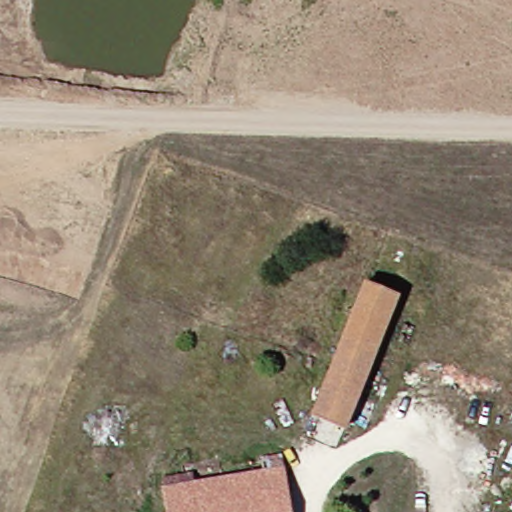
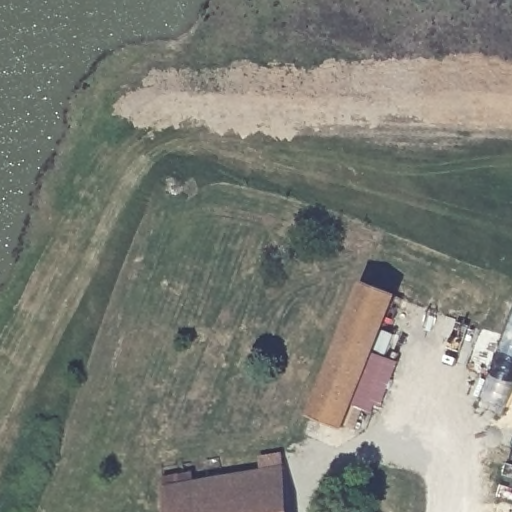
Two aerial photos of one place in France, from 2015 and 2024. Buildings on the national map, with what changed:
unchanged [(390,299),(338,429),(305,417),(356,287),(390,299)]
unchanged [(154,489),(153,481),(251,465),(250,460),(273,459),(274,470),(230,477),(154,489)]
unchanged [(281,512),(237,512),(230,477),(274,470),(281,512)]
unchanged [(159,512),(154,489),(230,477),(237,512),(159,512)]

